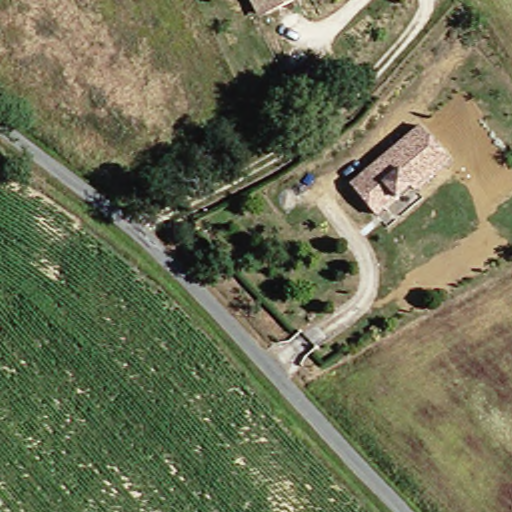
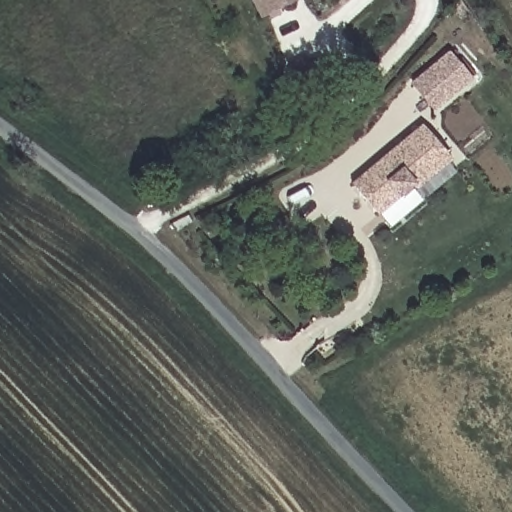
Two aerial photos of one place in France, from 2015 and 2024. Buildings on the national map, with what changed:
unchanged [(262,0),(299,0),(270,16),(262,0)]
new [(449,52),(471,79),(432,111),(410,85),(449,52)]
unchanged [(455,156),(422,189),(418,184),(387,216),(358,187),(424,123),(455,156)]

